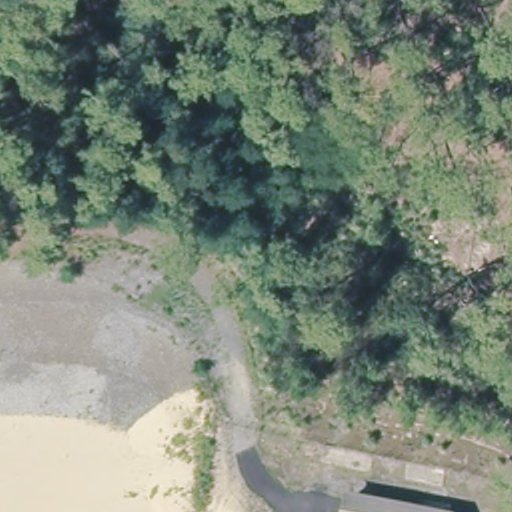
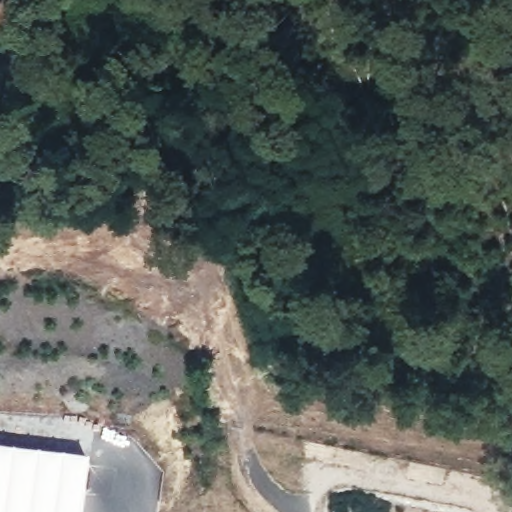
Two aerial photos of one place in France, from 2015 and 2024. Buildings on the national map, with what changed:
new [(89,461),(82,512),(0,512),(0,448),(89,461)]
unchanged [(344,512),(347,499),(417,512),(344,512)]

